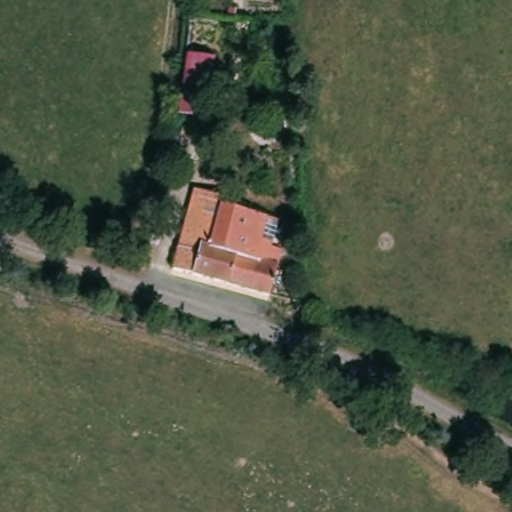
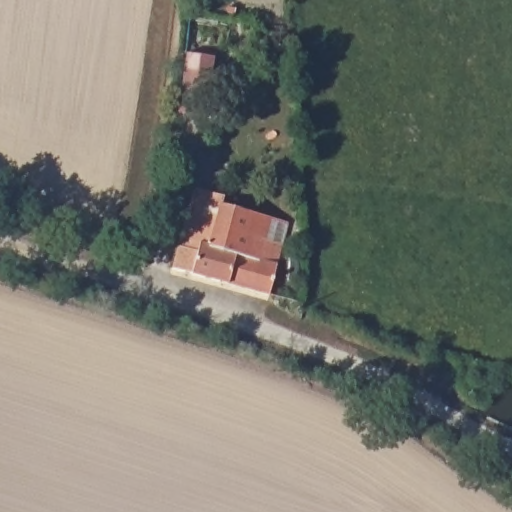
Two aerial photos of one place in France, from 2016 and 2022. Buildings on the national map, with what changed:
unchanged [(180,76),(207,79),(206,100),(205,119),(178,115),(179,95),(180,76)]
unchanged [(187,194),(219,200),(218,205),(281,219),(267,291),(171,268),(187,194)]

